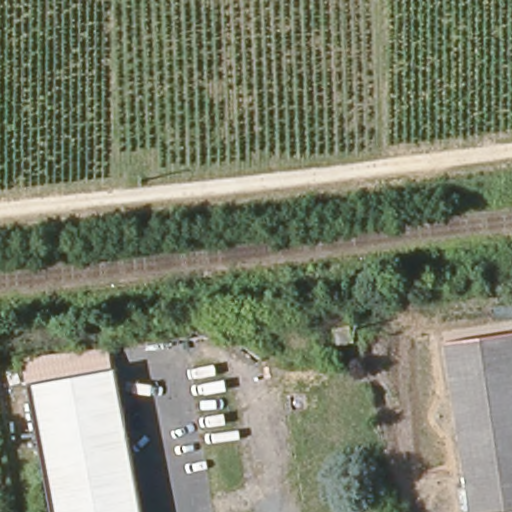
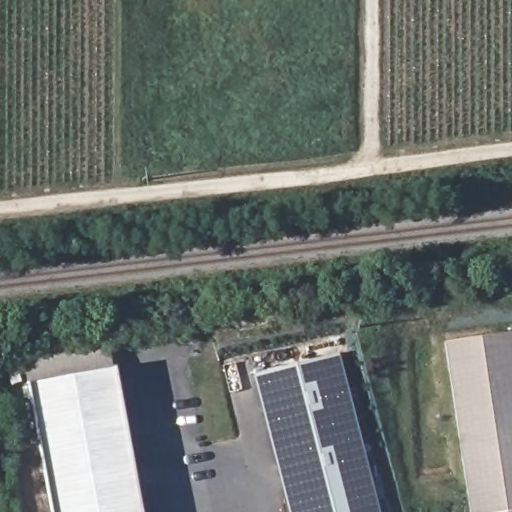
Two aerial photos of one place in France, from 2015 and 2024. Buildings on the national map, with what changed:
unchanged [(353,344),(334,349),(331,335),(349,329),(353,344)]
unchanged [(448,340),(512,329),(512,402),(459,410),(448,340)]
new [(253,375),(338,353),(379,512),(288,512),(253,375)]
unchanged [(25,402),(111,381),(143,512),(53,512),(25,402)]
unchanged [(459,410),(512,402),(512,512),(474,512),(459,410)]

